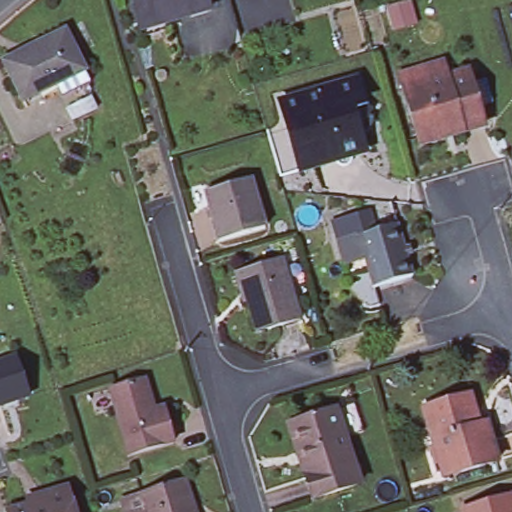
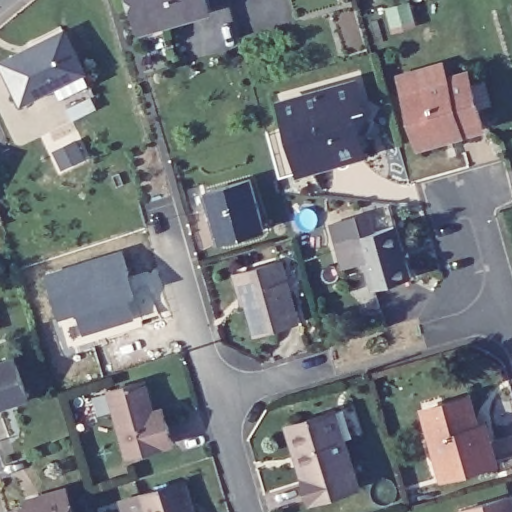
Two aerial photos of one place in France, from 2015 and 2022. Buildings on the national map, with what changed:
unchanged [(140,16),(135,0),(209,0),(211,9),(165,22),(167,31),(145,37),(140,16)]
unchanged [(65,30),(85,70),(25,100),(5,60),(65,30)]
unchanged [(422,151),(420,141),(406,95),(402,80),(445,69),(450,83),(470,77),(485,130),(462,137),(463,140),(422,151)]
unchanged [(292,125),(285,99),(356,77),(363,102),(372,105),(360,128),(367,149),(314,165),(306,167),(292,125)]
unchanged [(212,220),(216,219),(207,190),(255,176),(270,225),(223,239),(222,236),(218,237),(212,220)]
new [(378,228),(355,235),(363,261),(343,267),(330,221),(371,210),(378,228)]
unchanged [(395,223),(410,276),(371,287),(355,235),(395,223)]
new [(133,277),(133,285),(145,322),(89,340),(88,331),(84,332),(78,311),(60,318),(45,272),(125,247),(133,277)]
unchanged [(300,321),(256,335),(248,305),(243,306),(235,276),(244,273),(282,261),(300,321)]
unchanged [(0,404),(0,361),(12,357),(25,396),(0,404)]
unchanged [(140,380),(147,409),(157,406),(167,441),(123,455),(104,390),(140,380)]
unchanged [(476,423),(484,421),(487,435),(495,460),(441,476),(425,417),(422,408),(442,401),(468,393),(476,423)]
unchanged [(348,403),(355,425),(340,429),(356,483),(308,498),(301,475),(285,422),(292,420),(333,408),(348,403)]
unchanged [(188,479),(196,507),(197,512),(149,512),(143,492),(182,481),(188,479)]
unchanged [(3,511),(17,508),(15,501),(38,495),(60,488),(68,512),(3,512),(3,511)]
unchanged [(464,508),(512,494),(512,512),(465,512),(464,508)]

